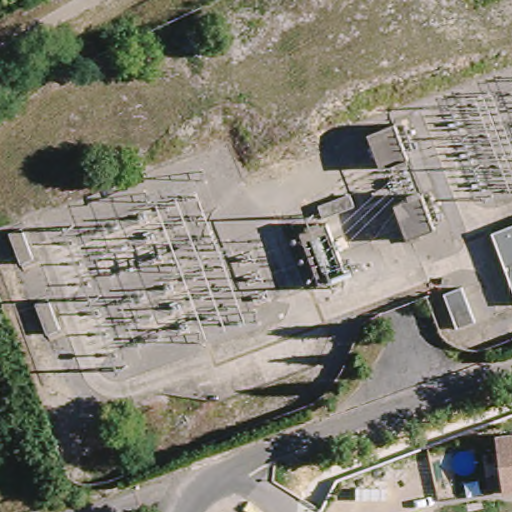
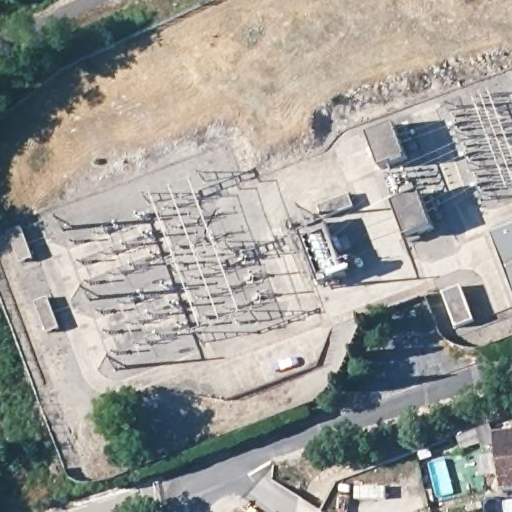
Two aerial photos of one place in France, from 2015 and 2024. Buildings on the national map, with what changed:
unchanged [(394,122),(408,161),(380,169),(366,132),(394,122)]
unchanged [(423,192),(437,232),(408,240),(395,203),(423,192)]
unchanged [(35,255),(18,260),(5,226),(22,221),(35,255)]
unchanged [(328,225),(348,280),(319,288),(300,235),(328,225)]
unchanged [(512,237),(512,288),(496,243),(512,237)]
unchanged [(62,325),(44,331),(34,297),(51,293),(62,325)]
unchanged [(465,297),(475,330),(457,337),(445,304),(465,297)]
unchanged [(480,456),(498,455),(497,439),(512,438),(512,495),(501,496),(500,480),(482,481),(480,456)]

